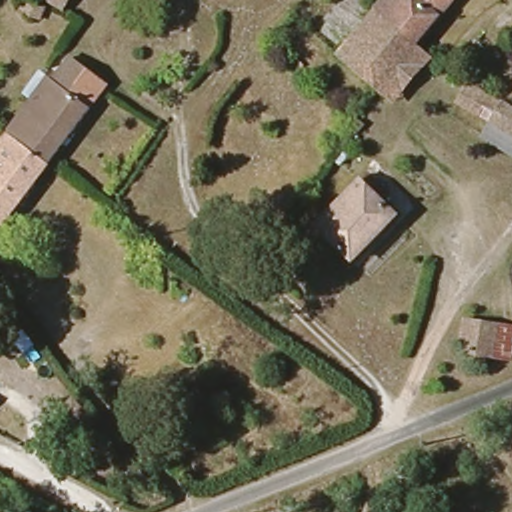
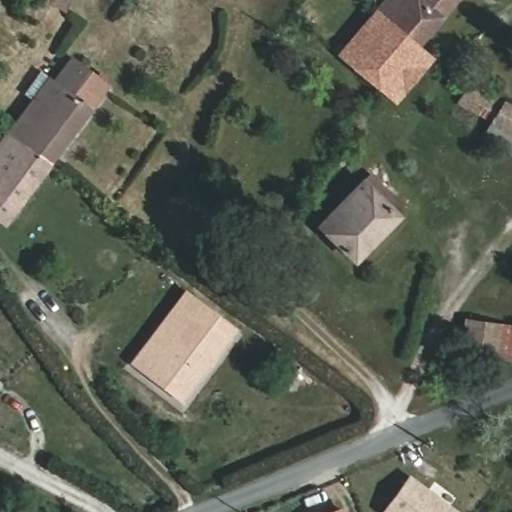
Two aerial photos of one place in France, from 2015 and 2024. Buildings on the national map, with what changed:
unchanged [(46,6),(35,20),(19,10),(24,0),(67,0),(59,11),(46,6)]
unchanged [(433,0),(406,30),(404,32),(375,4),(378,0),(433,0)]
unchanged [(404,32),(367,74),(335,46),(375,4),(404,32)]
unchanged [(419,46),(381,87),(367,74),(404,32),(419,46)]
unchanged [(1,138),(26,102),(42,82),(59,94),(70,80),(97,101),(86,115),(85,116),(45,171),(10,145),(1,138)]
unchanged [(480,138),(487,125),(456,105),(470,85),(503,104),(512,110),(512,154),(511,155),(480,138)]
unchanged [(0,229),(0,139),(1,138),(10,145),(45,171),(2,231),(0,229)]
unchanged [(390,221),(353,259),(316,226),(355,187),(390,221)]
new [(181,403),(128,362),(184,288),(237,329),(181,403)]
unchanged [(512,359),(511,363),(483,360),(480,375),(462,365),(465,352),(457,352),(465,320),(512,327),(512,359)]
new [(410,473),(460,512),(383,512),(410,473)]
new [(345,506),(347,512),(326,512),(345,506)]

